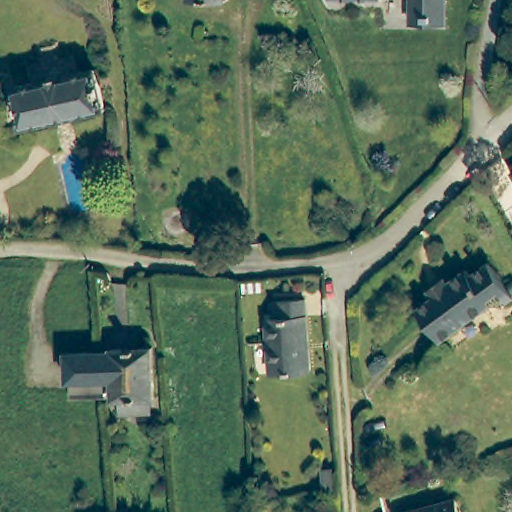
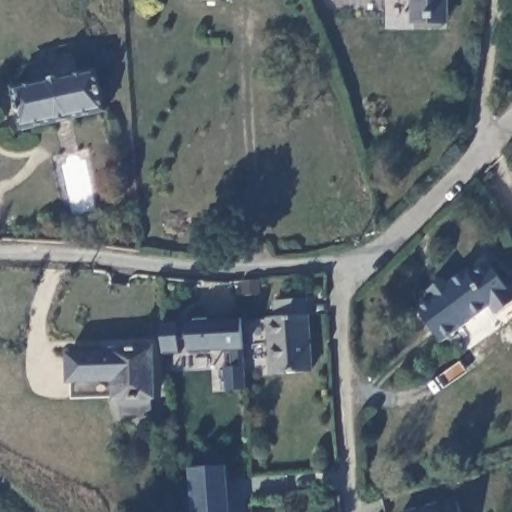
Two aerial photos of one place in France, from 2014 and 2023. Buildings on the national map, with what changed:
unchanged [(9,86),(25,82),(22,65),(67,56),(71,74),(90,70),(99,111),(18,127),(9,86)]
unchanged [(512,179),(504,167),(512,163),(512,179)]
unchanged [(430,301),(428,299),(429,299),(426,295),(442,284),(445,287),(464,273),(467,277),(484,264),(510,298),(501,306),(487,308),(438,345),(413,314),(430,301)]
unchanged [(261,281),(262,291),(243,291),(242,282),(261,281)]
unchanged [(311,367),(270,370),(267,320),(275,319),(274,304),(305,301),(311,367)]
new [(242,348),(246,388),(228,389),(225,349),(188,351),(185,320),(241,316),(242,348)]
unchanged [(77,400),(76,383),(74,383),(72,356),(103,353),(117,352),(116,350),(155,346),(158,395),(146,397),(146,410),(122,412),(122,400),(119,400),(119,396),(106,397),(77,400)]
new [(186,466),(227,462),(232,512),(191,512),(186,466)]
demolished [(332,470),(334,488),(323,489),(321,470),(332,470)]
unchanged [(460,512),(405,512),(456,497),(460,512)]

